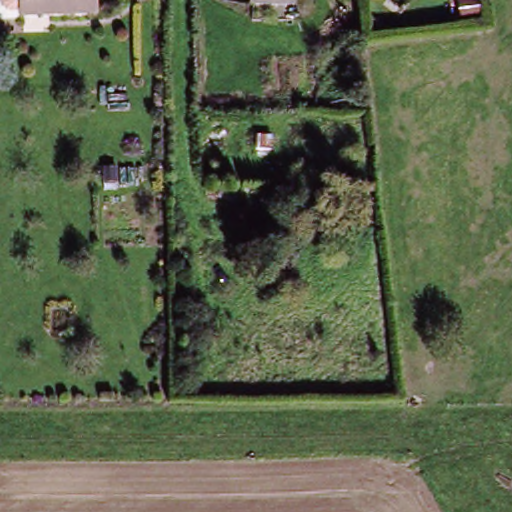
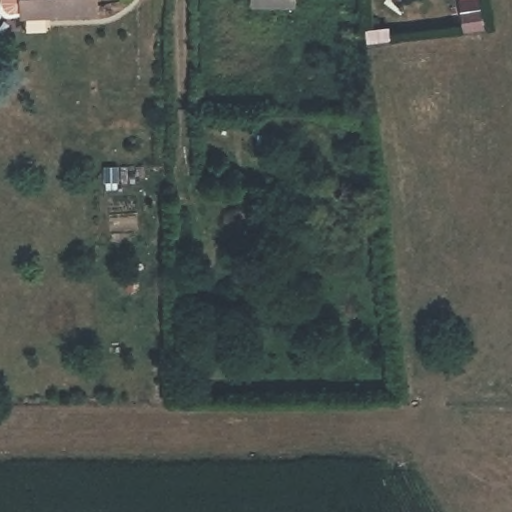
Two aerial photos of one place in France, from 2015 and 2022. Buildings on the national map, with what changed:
unchanged [(22,12),(22,0),(101,0),(101,19),(56,20),(22,20),(22,12)]
unchanged [(255,0),(294,0),(294,10),(255,11),(255,0)]

